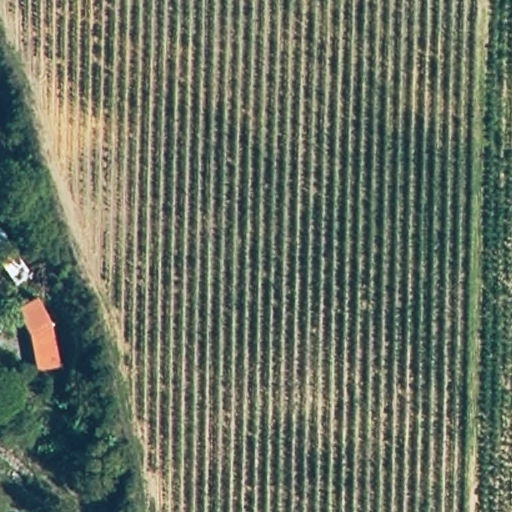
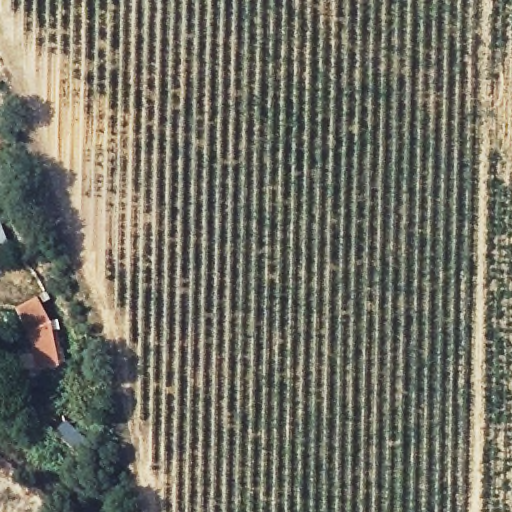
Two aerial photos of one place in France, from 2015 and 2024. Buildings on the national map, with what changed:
unchanged [(12,246),(0,250),(0,213),(12,246)]
unchanged [(39,298),(52,327),(60,369),(35,371),(30,336),(17,308),(39,298)]

